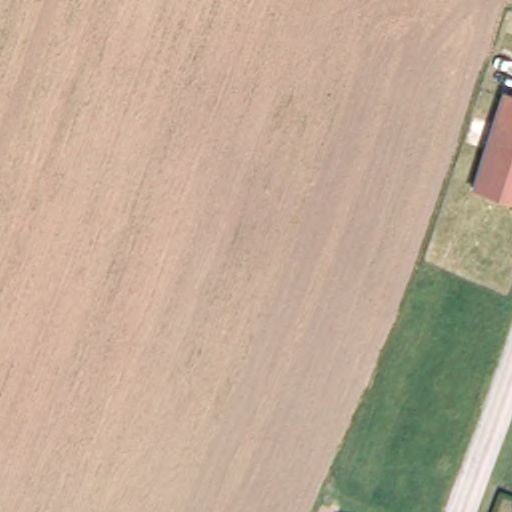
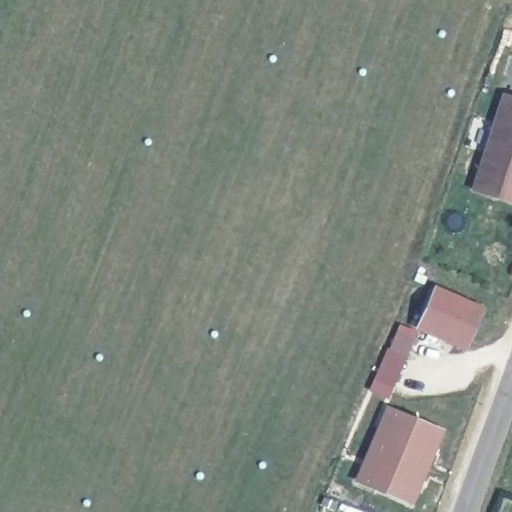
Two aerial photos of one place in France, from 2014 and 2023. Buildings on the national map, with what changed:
unchanged [(512,206),(470,192),(500,92),(512,96),(512,206)]
new [(444,429),(412,505),(353,481),(385,404),(444,429)]

